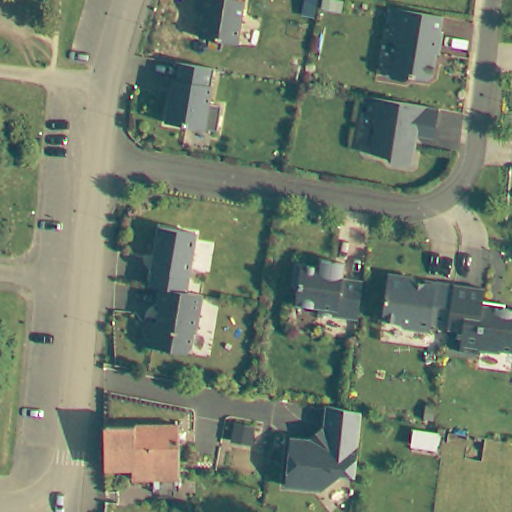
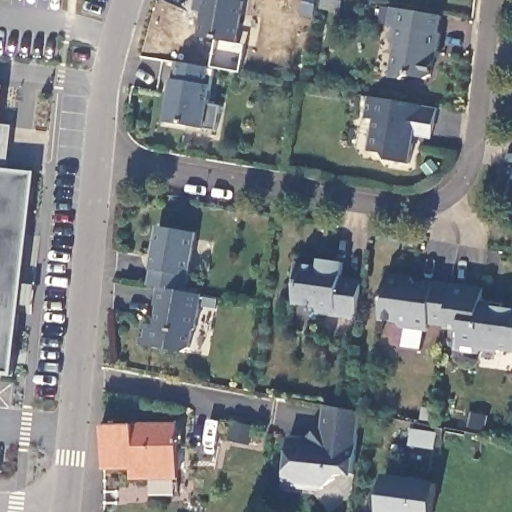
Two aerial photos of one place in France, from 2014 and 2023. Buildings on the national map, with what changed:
unchanged [(202,35),(206,10),(198,8),(199,0),(246,0),(239,41),(202,35)]
unchanged [(442,34),(444,34),(441,54),(438,53),(435,76),(429,79),(412,77),(407,80),(394,78),(400,46),(396,41),(398,27),(392,26),(395,8),(445,16),(442,34)]
unchanged [(211,102),(223,104),(219,129),(167,120),(179,59),(217,66),(211,102)]
new [(0,104),(0,86),(2,86),(0,104)]
unchanged [(410,136),(408,144),(415,145),(411,166),(390,162),(386,155),(372,152),(377,121),(367,119),(372,97),(440,110),(440,111),(436,128),(433,141),(410,136)]
new [(0,373),(0,169),(35,173),(14,374),(0,373)]
unchanged [(178,290),(158,286),(150,285),(152,269),(159,226),(195,232),(185,291),(178,290)]
unchanged [(362,286),(357,320),(317,313),(317,307),(295,303),(297,286),(292,285),(297,262),(321,266),(322,259),(345,262),(342,277),(347,283),(362,286)]
unchanged [(435,323),(433,331),(406,327),(402,322),(386,319),(393,273),(418,277),(417,282),(428,283),(429,281),(458,285),(455,303),(452,326),(435,323)]
unchanged [(488,290),(486,306),(512,311),(512,353),(505,352),(502,354),(483,351),(478,355),(467,353),(462,352),(466,331),(451,329),(452,326),(455,303),(458,285),(488,290)]
unchanged [(178,290),(185,291),(201,294),(195,329),(192,331),(189,347),(183,351),(137,343),(142,320),(155,322),(158,305),(155,304),(158,286),(178,290)]
demolished [(102,359),(109,359),(109,358),(112,359),(114,359),(114,365),(102,365),(102,359)]
unchanged [(308,439),(323,428),(326,405),(363,413),(356,460),(355,478),(341,475),(322,492),(285,487),(291,438),(308,439)]
unchanged [(177,425),(179,480),(135,481),(134,471),(104,471),(103,428),(177,425)]
demolished [(487,438),(486,448),(442,442),(443,432),(487,438)]
new [(437,482),(434,512),(380,512),(386,475),(437,482)]

